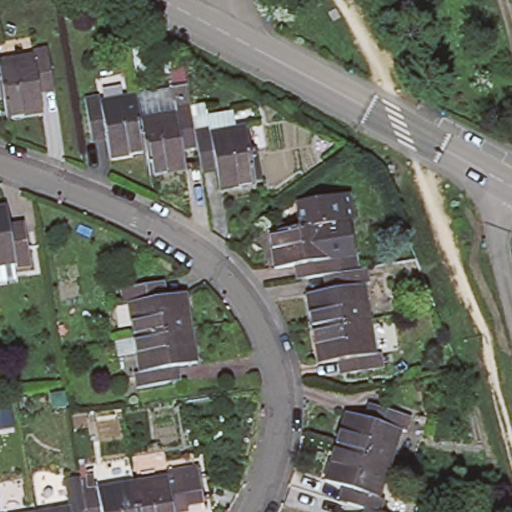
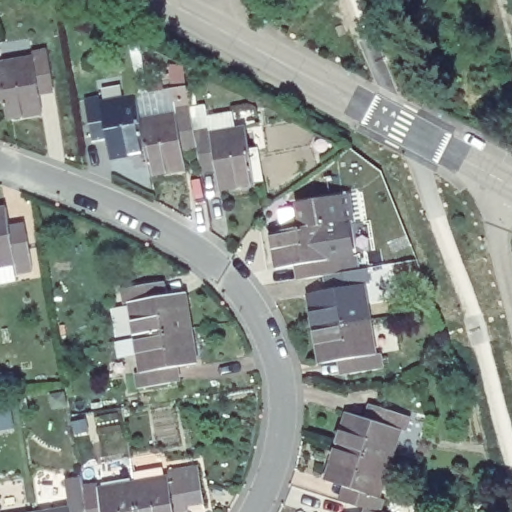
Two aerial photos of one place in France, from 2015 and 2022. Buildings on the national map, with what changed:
unchanged [(0,103),(0,99),(0,65),(30,60),(29,54),(45,52),(50,85),(35,88),(39,116),(4,123),(0,103)]
unchanged [(143,155),(108,160),(103,134),(88,136),(82,101),(97,99),(98,104),(133,99),(138,121),(143,155)]
unchanged [(218,192),(213,164),(198,166),(193,143),(178,144),(183,172),(148,178),(143,155),(138,121),(173,115),(172,110),(188,108),(192,133),(206,130),(208,135),(243,129),(253,186),(218,192)]
unchanged [(296,235),(291,209),(346,201),(349,227),(344,228),(324,230),(296,235)]
unchanged [(0,211),(3,211),(7,239),(22,236),(28,269),(13,273),(12,266),(10,267),(13,284),(0,286),(0,211)]
unchanged [(330,281),(303,285),(301,270),(273,274),(268,239),(296,235),(324,230),(344,228),(350,263),(354,263),(356,277),(364,276),(366,291),(361,292),(368,327),(311,336),(306,301),(333,297),(330,281)]
unchanged [(116,310),(114,295),(149,289),(151,304),(179,300),(185,335),(128,344),(123,309),(116,310)]
unchanged [(348,382),(346,367),(317,371),(311,336),(368,327),(374,362),(379,361),(382,376),(348,382)]
unchanged [(131,395),(128,381),(134,379),(128,344),(185,335),(191,370),(163,374),(166,389),(131,395)]
unchanged [(339,414),(368,424),(373,409),(406,420),(401,435),(394,433),(383,466),(329,449),(339,414)]
unchanged [(341,504),(345,492),(318,483),(329,449),(383,466),(372,500),(379,503),(376,512),(364,512),(341,504)]
unchanged [(170,472),(186,469),(191,503),(176,506),(177,512),(141,512),(136,484),(171,479),(170,472)]
unchanged [(72,503),(88,500),(85,487),(100,484),(101,490),(136,484),(141,512),(54,512),(73,509),(72,503)]
unchanged [(0,502),(2,512),(0,512),(0,502)]

